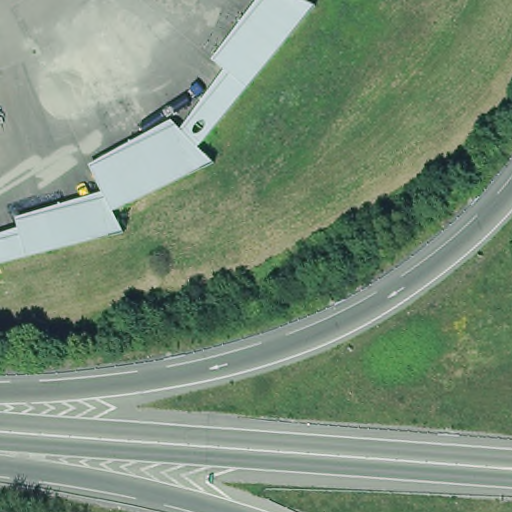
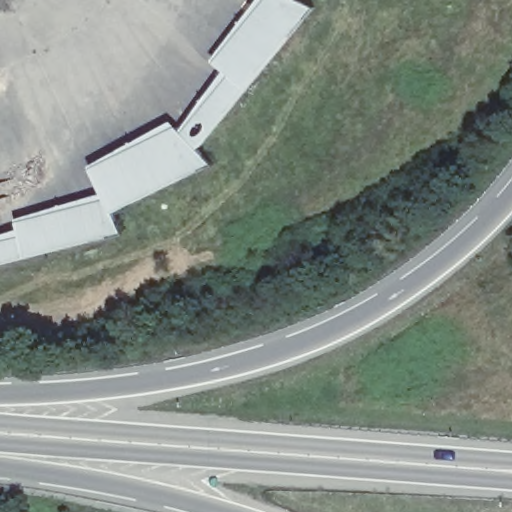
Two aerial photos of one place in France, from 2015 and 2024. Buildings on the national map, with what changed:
unchanged [(248,83),(231,69),(215,56),(261,0),(310,0),(314,2),(248,83)]
unchanged [(198,143),(177,121),(231,69),(248,83),(198,143)]
unchanged [(212,157),(113,207),(107,192),(92,163),(177,121),(198,143),(212,157)]
unchanged [(122,226),(27,252),(20,226),(17,216),(107,192),(113,207),(122,226)]
unchanged [(0,233),(20,226),(27,252),(0,259),(0,233)]

